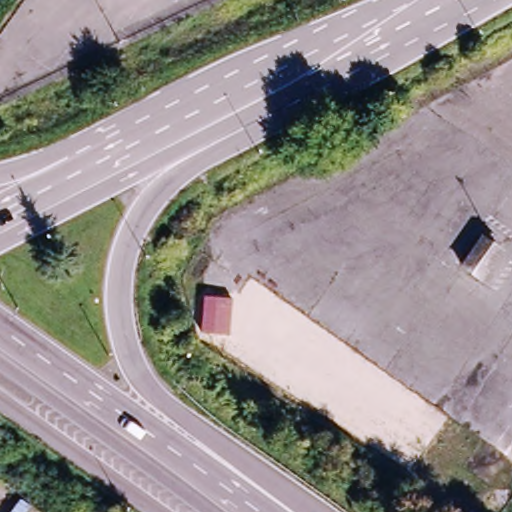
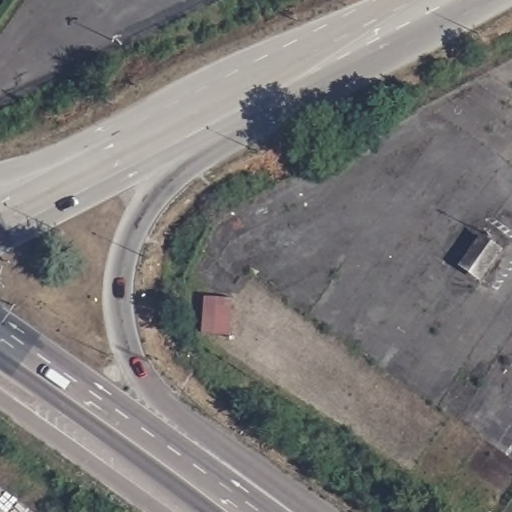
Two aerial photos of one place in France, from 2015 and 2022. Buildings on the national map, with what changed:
unchanged [(506,254),(483,286),(460,270),(483,237),(506,254)]

